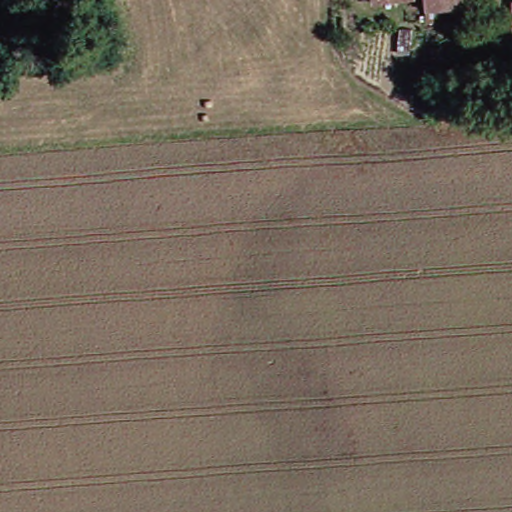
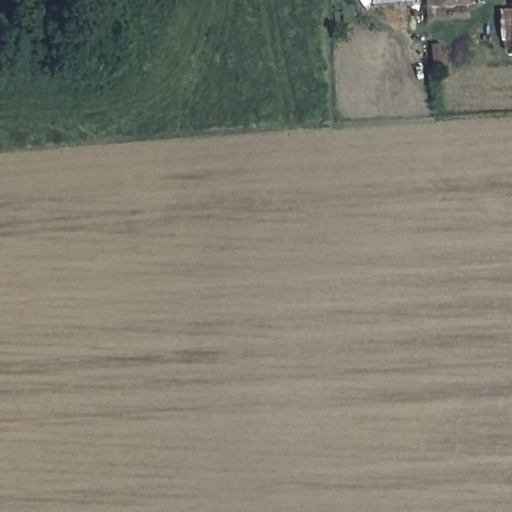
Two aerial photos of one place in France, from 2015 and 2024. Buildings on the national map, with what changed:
unchanged [(420,0),(462,0),(462,2),(421,3),(420,0)]
unchanged [(510,7),(512,6),(512,38),(509,38),(510,7)]

